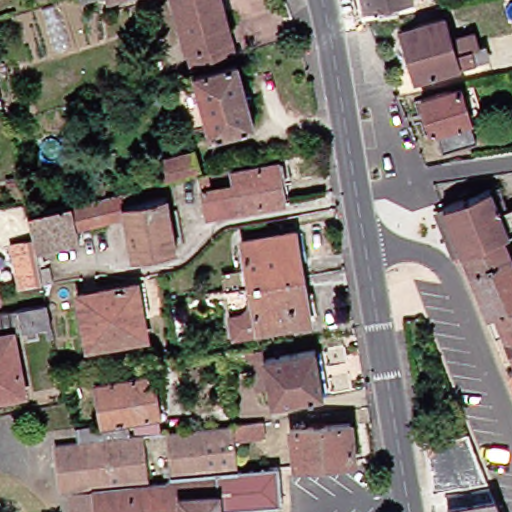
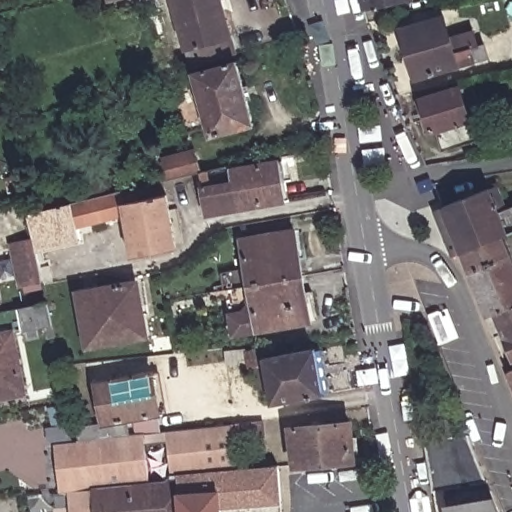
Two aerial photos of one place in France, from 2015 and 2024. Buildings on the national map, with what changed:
unchanged [(103,0),(125,0),(105,6),(103,0)]
unchanged [(189,70),(170,0),(216,0),(232,58),(189,70)]
unchanged [(360,14),(357,0),(408,0),(409,5),(360,14)]
unchanged [(490,61),(416,83),(402,33),(445,21),(452,43),(473,37),(477,51),(487,48),(490,61)]
unchanged [(233,66),(250,127),(207,139),(191,78),(233,66)]
unchanged [(467,89),(475,115),(464,118),(471,145),(438,155),(433,134),(427,136),(417,104),(467,89)]
unchanged [(145,165),(155,163),(210,150),(215,171),(195,176),(178,179),(160,185),(150,187),(145,165)]
unchanged [(212,217),(202,218),(200,214),(195,176),(215,171),(229,168),(230,173),(279,165),(286,205),(212,217)]
unchanged [(502,228),(461,247),(441,198),(489,180),(499,207),(512,202),(512,224),(502,228)]
unchanged [(71,231),(65,207),(117,195),(132,191),(134,204),(119,207),(120,219),(71,231)]
unchanged [(172,253),(128,261),(124,237),(120,219),(119,207),(134,204),(162,198),(172,251),(172,253)]
unchanged [(62,245),(31,251),(29,241),(23,217),(65,207),(71,231),(72,238),(74,240),(74,243),(62,245)]
unchanged [(502,228),(512,253),(512,298),(486,309),(461,247),(502,228)]
unchanged [(38,283),(13,287),(5,247),(29,241),(31,251),(35,267),(45,265),(50,284),(39,288),(38,283)]
unchanged [(252,293),(244,250),(296,241),(304,285),(252,293)]
unchanged [(235,343),(228,307),(211,309),(210,301),(227,298),(252,293),(304,285),(312,330),(235,343)]
unchanged [(132,286),(140,339),(82,348),(73,295),(132,286)]
unchanged [(504,325),(494,329),(486,309),(512,298),(512,345),(504,325)]
unchanged [(54,328),(10,338),(21,394),(0,398),(0,316),(48,305),(54,328)]
unchanged [(225,371),(224,359),(232,359),(244,358),(244,360),(260,358),(262,366),(312,358),(320,405),(269,413),(262,374),(239,376),(237,371),(234,371),(225,371)]
unchanged [(510,364),(512,364),(512,368),(510,364)]
unchanged [(72,430),(110,422),(103,383),(160,373),(167,415),(164,416),(167,432),(143,435),(141,420),(130,422),(131,436),(97,440),(75,443),(75,441),(72,430)]
unchanged [(162,482),(92,489),(68,491),(57,493),(52,441),(75,441),(75,443),(97,440),(131,436),(143,435),(167,432),(230,426),(242,425),(258,424),(260,442),(232,444),(235,472),(168,478),(162,482)]
unchanged [(314,429),(345,427),(350,464),(292,469),(287,433),(314,429)]
unchanged [(484,487),(439,494),(429,497),(420,445),(465,440),(484,487)]
unchanged [(230,512),(93,512),(92,489),(162,482),(168,478),(235,472),(275,469),(275,473),(277,508),(230,512)]
unchanged [(442,512),(439,494),(484,487),(493,512),(442,512)]
unchanged [(69,512),(68,491),(92,489),(93,512),(69,512)]

